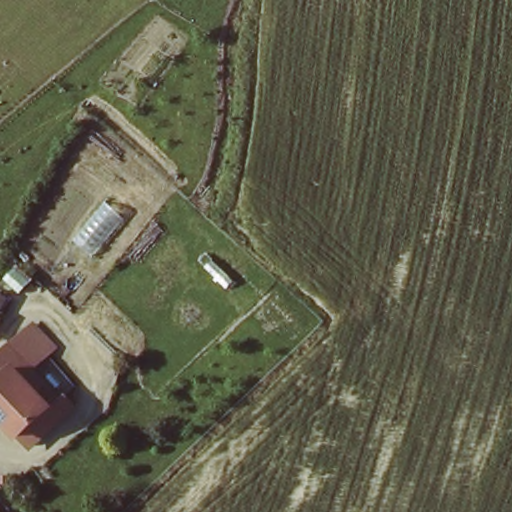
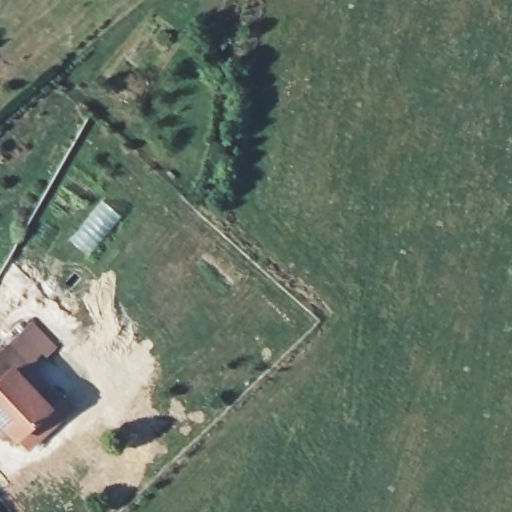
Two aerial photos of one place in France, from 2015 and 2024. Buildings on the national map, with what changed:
unchanged [(61,402),(70,414),(47,430),(41,434),(21,447),(0,416),(0,415),(4,413),(0,408),(0,349),(26,331),(36,325),(55,353),(46,360),(32,370),(33,372),(55,405),(61,401),(61,402)]

